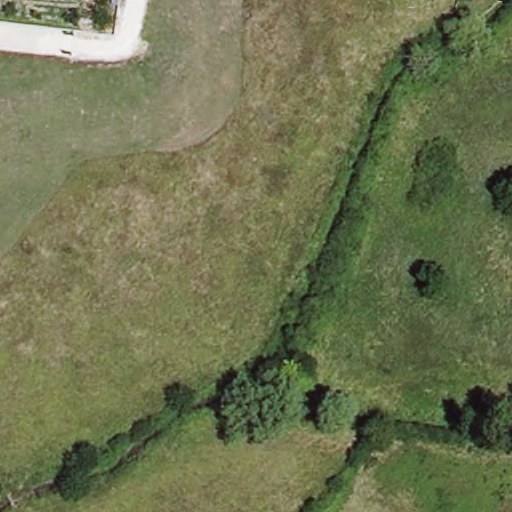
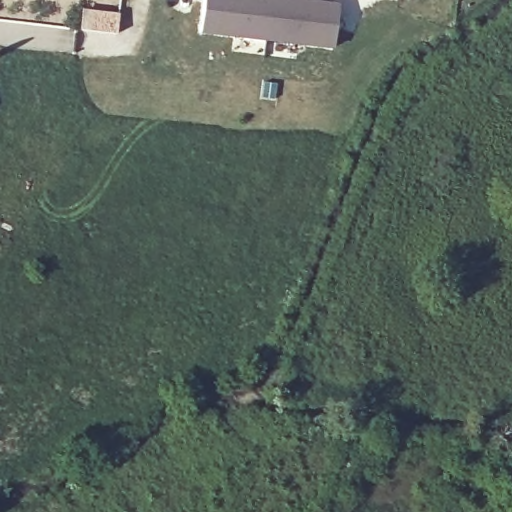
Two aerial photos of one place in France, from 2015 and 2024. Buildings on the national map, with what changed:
new [(334,46),(201,31),(205,0),(308,0),(339,4),(334,46)]

